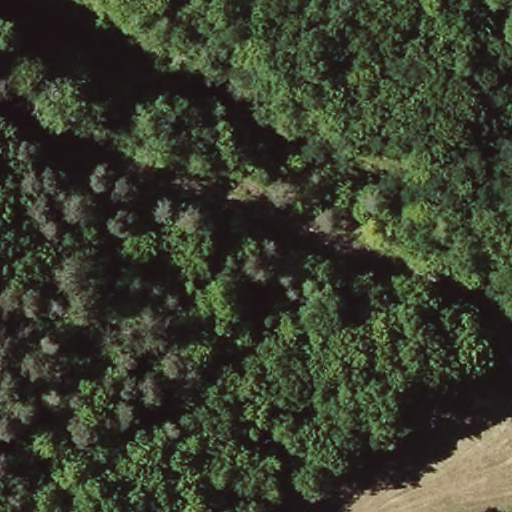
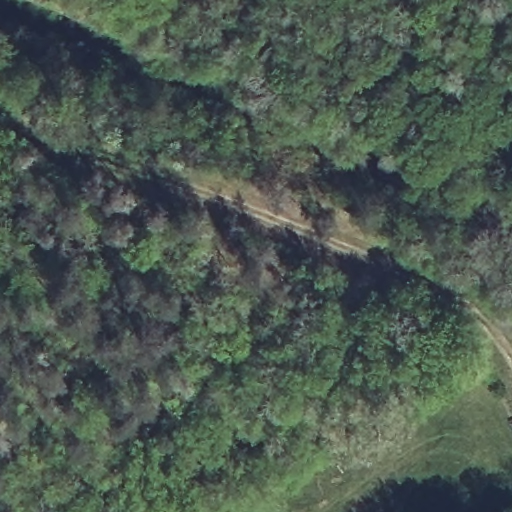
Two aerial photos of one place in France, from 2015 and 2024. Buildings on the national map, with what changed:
[]

